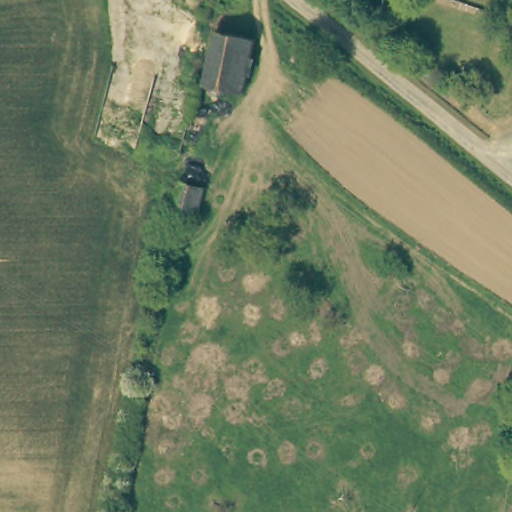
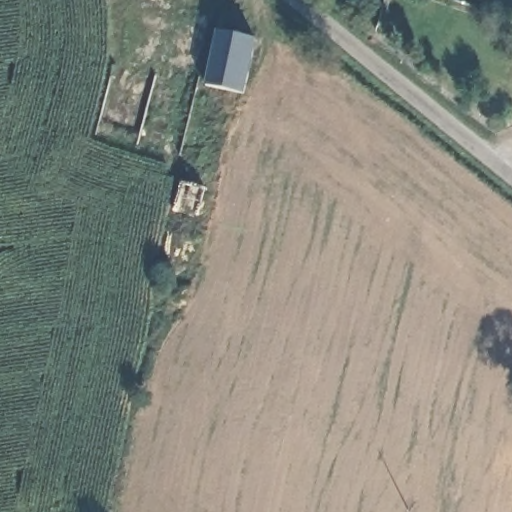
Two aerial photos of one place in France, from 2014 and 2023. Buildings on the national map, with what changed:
unchanged [(257,30),(243,85),(203,76),(215,20),(257,30)]
unchanged [(188,172),(187,179),(198,180),(190,215),(168,210),(177,169),(188,172)]

